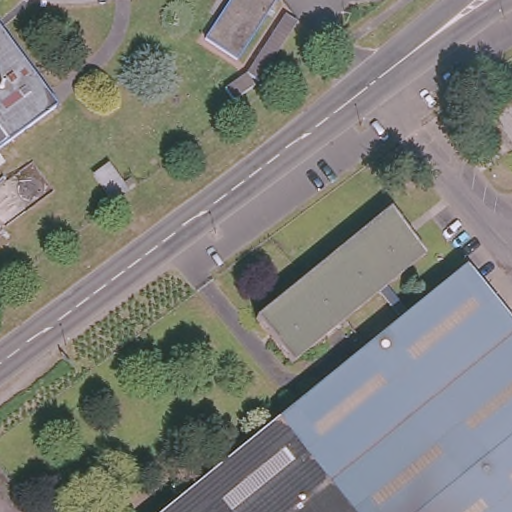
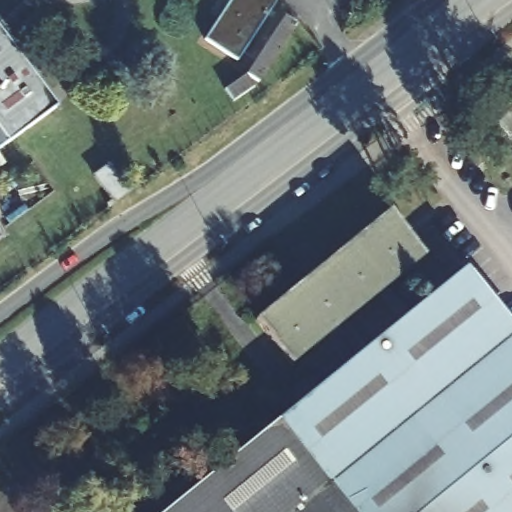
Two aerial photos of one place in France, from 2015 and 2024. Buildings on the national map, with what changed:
unchanged [(236,59),(205,42),(228,0),(270,0),(236,59)]
unchanged [(55,104),(0,146),(0,30),(55,104)]
unchanged [(512,105),(512,147),(490,124),(512,105)]
unchanged [(424,252),(294,365),(255,321),(386,209),(424,252)]
unchanged [(512,512),(168,512),(450,267),(512,338),(512,512)]

